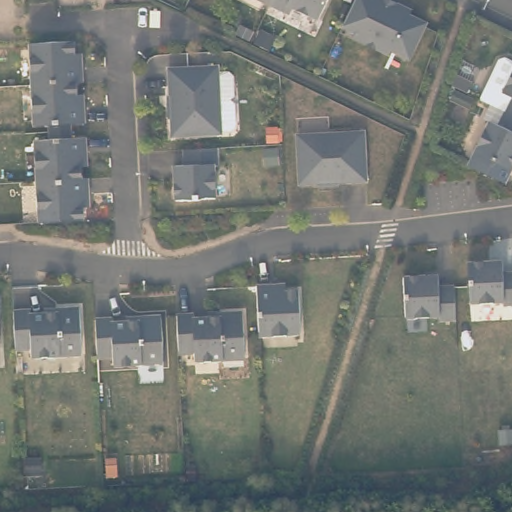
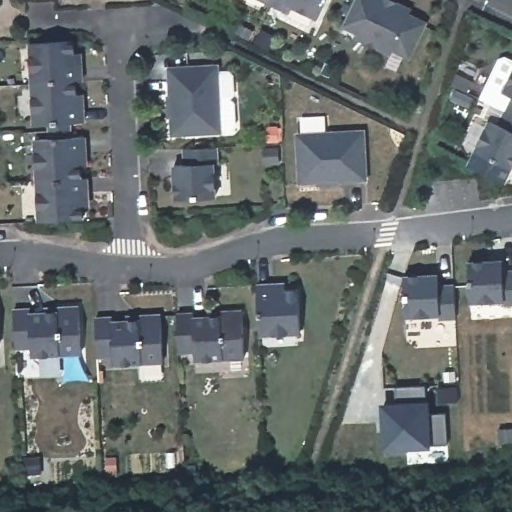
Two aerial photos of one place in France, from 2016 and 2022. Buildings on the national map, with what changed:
unchanged [(270,1),(267,0),(271,0),(270,1)]
unchanged [(319,14),(295,3),(291,12),(270,1),(271,0),(326,0),(319,14)]
unchanged [(411,1),(418,5),(414,12),(431,19),(415,54),(397,46),(394,52),(359,35),(361,28),(349,22),(360,0),(408,0),(411,1)]
unchanged [(39,37),(82,35),(84,59),(90,59),(91,76),(84,76),(41,78),(39,37)]
unchanged [(509,105),(486,93),(503,55),(508,54),(512,56),(512,106),(509,105)]
unchanged [(168,63),(216,60),(218,94),(229,94),(233,98),(234,120),(230,124),(219,125),(219,127),(171,129),(170,112),(167,112),(166,91),(169,91),(168,63)]
unchanged [(58,118),(43,119),(41,78),(84,76),(86,100),(92,100),(93,117),(78,117),(79,125),(59,126),(58,118)]
unchanged [(480,147),(494,117),(502,120),(509,105),(512,106),(512,163),(480,147)]
unchanged [(44,135),(59,134),(59,126),(79,125),(79,133),(93,132),(94,149),(88,149),(89,173),(46,175),(44,135)]
unchanged [(278,127),(278,141),(268,141),(268,127),(278,127)]
unchanged [(317,185),(317,182),(300,182),(298,134),(364,131),(366,180),(338,181),(338,184),(317,185)]
unchanged [(216,147),(217,163),(213,164),(214,197),(175,199),(173,165),(184,164),(183,149),(216,147)]
unchanged [(46,175),(89,173),(96,173),(97,190),(90,190),(91,214),(48,216),(46,175)]
unchanged [(511,296),(511,292),(478,294),(476,255),(510,253),(511,264),(512,264),(512,296),(511,296)]
unchanged [(451,307),(451,310),(434,311),(434,307),(401,308),(399,269),(433,267),(433,278),(449,278),(451,307)]
unchanged [(262,281),(279,280),(279,286),(303,285),(305,328),(265,330),(262,281)]
unchanged [(4,340),(0,340),(0,294),(1,293),(4,340)]
unchanged [(22,304),(39,304),(39,308),(53,308),(53,303),(65,302),(88,301),(90,348),(40,350),(40,341),(24,342),(24,340),(22,304)]
unchanged [(104,312),(121,312),(121,316),(135,315),(135,311),(147,310),(170,309),(172,355),(122,358),(122,349),(106,350),(105,326),(104,312)]
unchanged [(193,313),(193,318),(207,317),(207,313),(219,312),(242,311),(244,357),(194,360),(194,351),(178,352),(176,314),(193,313)]
new [(431,445),(410,447),(409,453),(384,453),(384,446),(382,405),(397,403),(396,385),(426,384),(428,401),(430,413),(446,411),(448,446),(431,445)]
unchanged [(37,468),(38,483),(25,483),(25,468),(37,468)]

